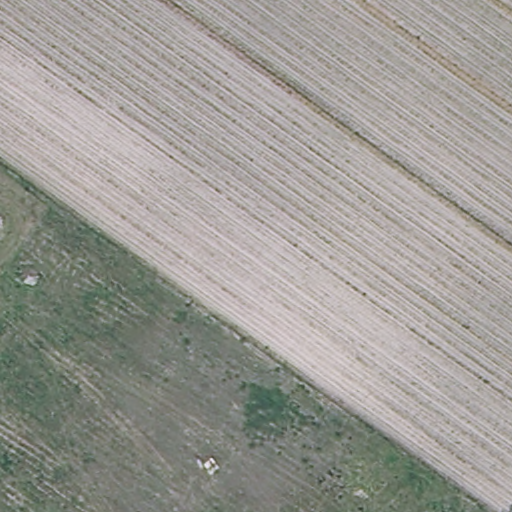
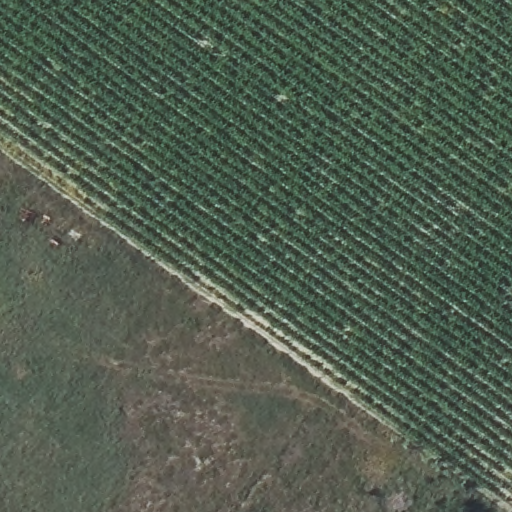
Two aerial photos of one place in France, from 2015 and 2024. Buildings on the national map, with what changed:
[]

